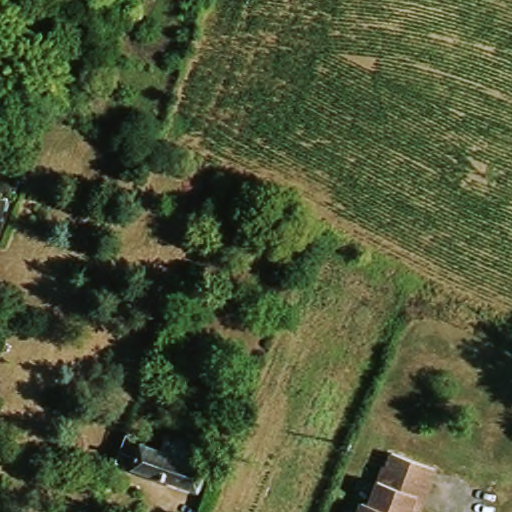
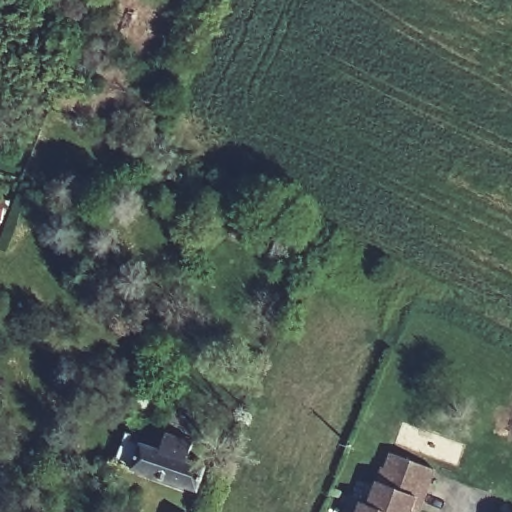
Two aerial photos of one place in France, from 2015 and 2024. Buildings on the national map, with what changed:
unchanged [(127,468),(135,444),(169,454),(173,438),(200,446),(195,461),(215,468),(205,493),(127,468)]
unchanged [(369,506),(385,468),(387,469),(393,454),(435,472),(423,501),(417,498),(411,512),(359,512),(362,503),(369,506)]

